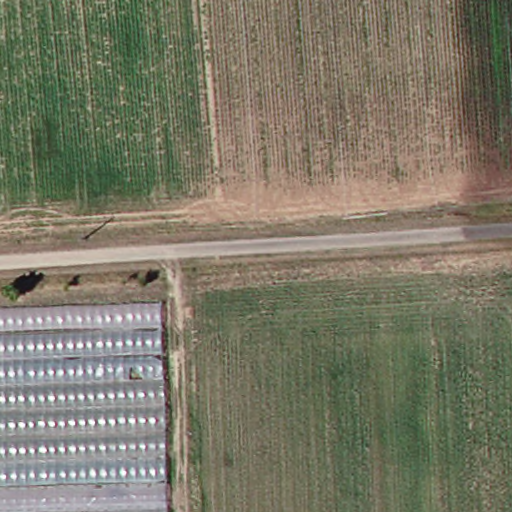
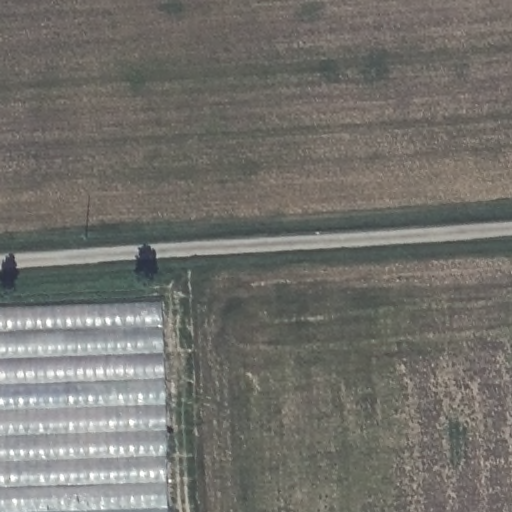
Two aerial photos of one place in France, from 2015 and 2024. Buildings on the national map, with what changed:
unchanged [(168,512),(0,512),(0,308),(162,302),(168,512)]

